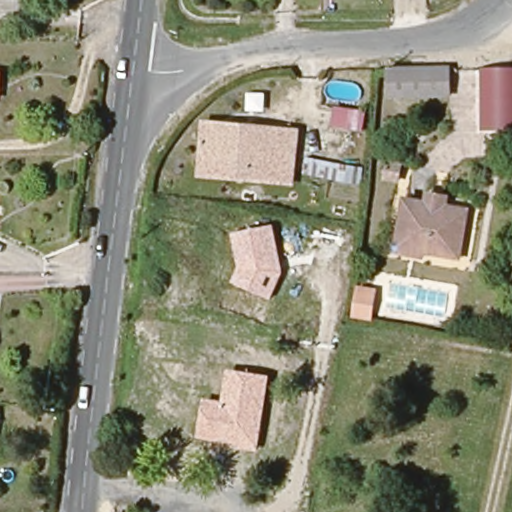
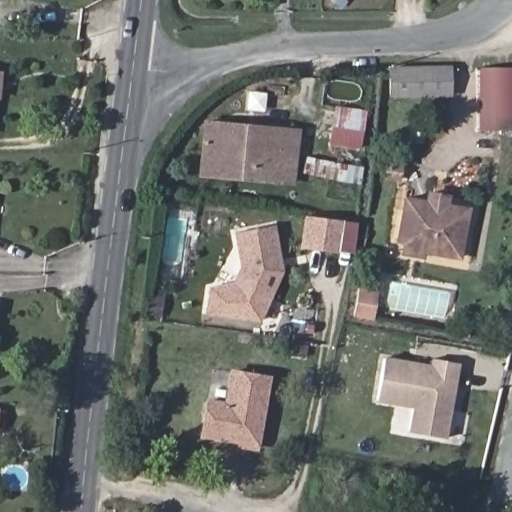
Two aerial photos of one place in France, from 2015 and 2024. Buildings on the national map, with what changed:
unchanged [(450,69),(450,94),(388,96),(389,70),(450,69)]
unchanged [(512,138),(472,138),(476,74),(512,74),(512,138)]
unchanged [(282,181),(194,177),(195,151),(195,125),(220,126),(285,129),(282,181)]
unchanged [(359,186),(302,175),(306,156),(362,167),(359,186)]
unchanged [(406,258),(408,244),(405,243),(412,204),(431,207),(433,197),(453,201),(452,210),(472,213),(463,261),(425,254),(425,260),(406,258)]
new [(352,256),(299,248),(303,216),(357,223),(352,256)]
unchanged [(270,301),(232,283),(240,268),(232,234),(273,226),(283,273),(270,301)]
new [(270,301),(260,321),(208,313),(211,288),(232,283),(270,301)]
unchanged [(381,288),(373,323),(347,319),(352,284),(381,288)]
new [(446,440),(407,433),(411,409),(377,403),(386,357),(430,365),(431,358),(460,363),(446,440)]
unchanged [(258,452),(236,448),(237,444),(198,438),(205,399),(222,401),(228,370),(271,377),(258,452)]
demolished [(302,471),(298,470),(300,457),(305,458),(321,461),(319,473),(302,471)]

